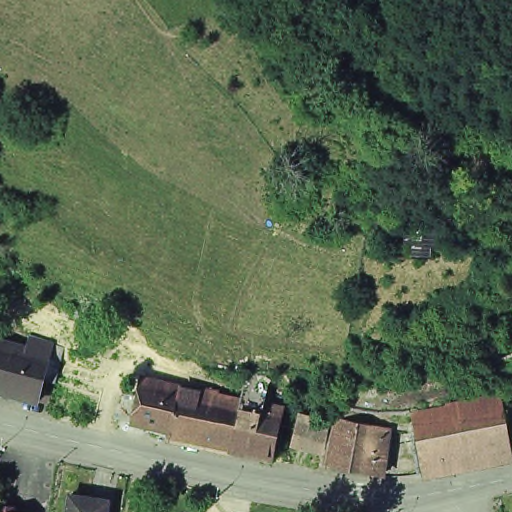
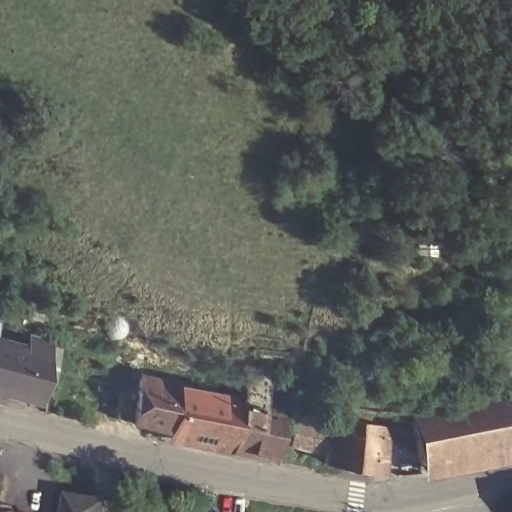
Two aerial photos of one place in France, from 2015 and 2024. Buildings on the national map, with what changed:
unchanged [(45,373),(40,397),(0,386),(0,336),(27,344),(31,330),(65,341),(55,376),(45,373)]
unchanged [(175,431),(138,422),(120,418),(127,390),(145,393),(149,378),(249,403),(236,450),(174,436),(175,431)]
unchanged [(269,404),(288,408),(278,460),(236,450),(249,403),(253,383),(272,388),(269,404)]
unchanged [(413,413),(501,396),(511,448),(423,465),(413,413)]
unchanged [(341,417),(333,446),(305,438),(312,410),(341,417)]
unchanged [(387,446),(385,470),(337,460),(347,411),(392,420),(392,424),(398,425),(397,442),(396,447),(387,446)]
unchanged [(512,418),(512,422),(511,418),(512,418)]
unchanged [(65,496),(65,490),(85,493),(105,497),(102,512),(62,512),(65,496)]
unchanged [(0,507),(1,502),(15,504),(14,510),(32,512),(0,512),(0,511),(0,507)]

